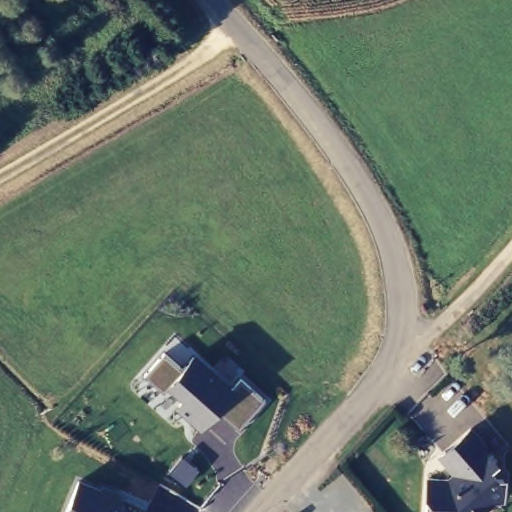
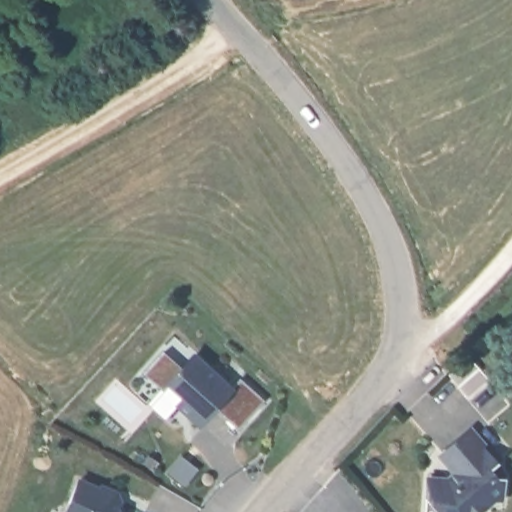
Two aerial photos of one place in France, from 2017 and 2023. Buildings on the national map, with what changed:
unchanged [(261,399),(238,426),(218,410),(201,427),(143,373),(163,352),(179,367),(195,351),(233,388),(239,378),(261,398),(261,399)]
unchanged [(421,492),(442,473),(431,459),(472,425),(507,477),(504,504),(493,503),(481,512),(440,512),(421,492)]
unchanged [(78,478),(98,487),(99,482),(118,491),(120,507),(122,512),(62,512),(78,478)]

